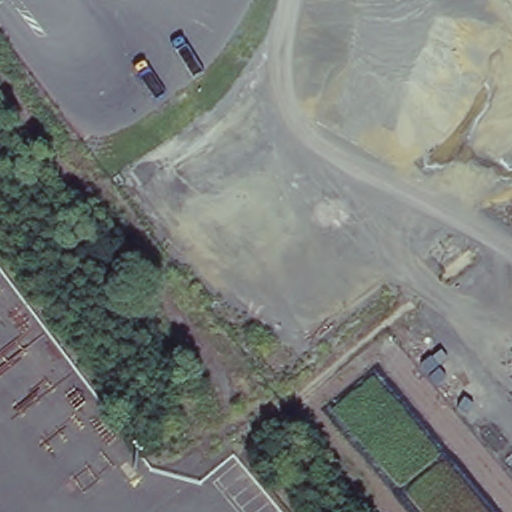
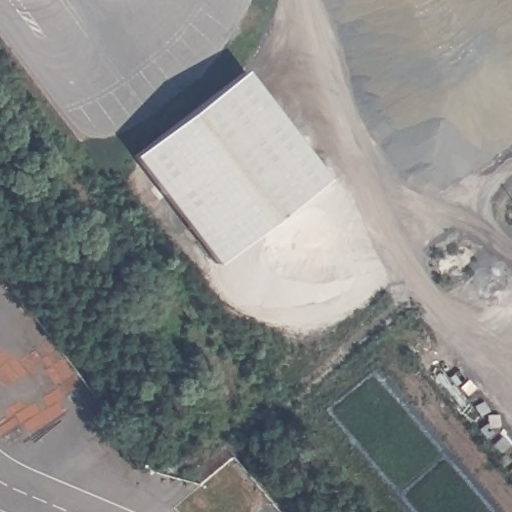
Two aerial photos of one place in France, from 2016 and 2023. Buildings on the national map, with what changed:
new [(237,70),(333,189),(211,289),(120,164),(237,70)]

